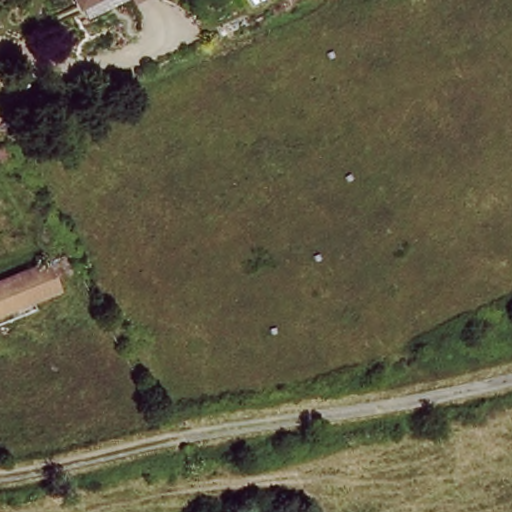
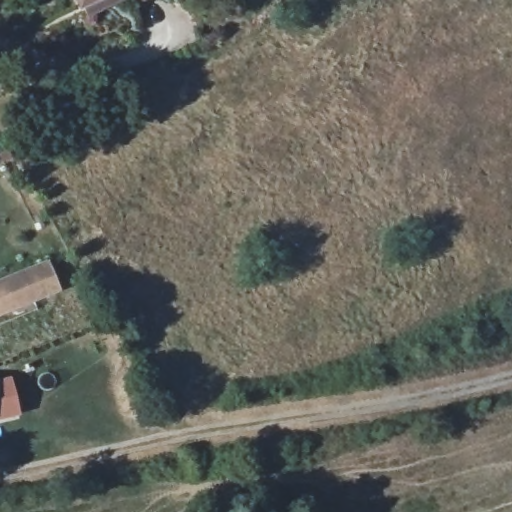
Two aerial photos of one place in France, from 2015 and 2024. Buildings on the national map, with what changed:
unchanged [(80,0),(79,1),(78,0),(80,0)]
unchanged [(72,274),(0,317),(0,288),(57,252),(72,274)]
new [(20,417),(0,421),(0,381),(11,379),(20,417)]

